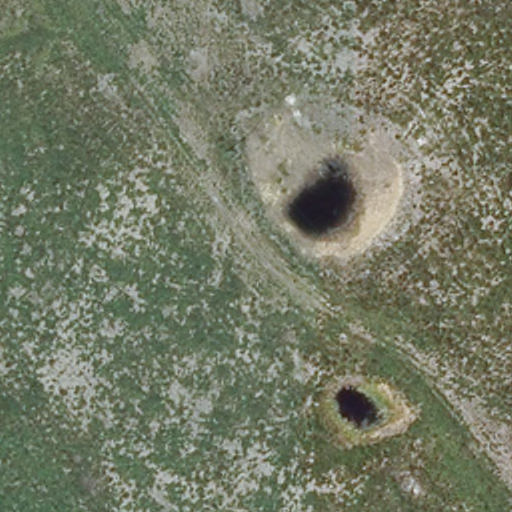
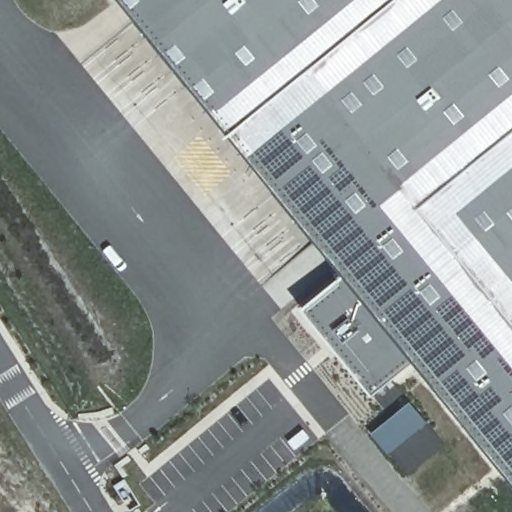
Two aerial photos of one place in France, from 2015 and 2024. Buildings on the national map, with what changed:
new [(420,365),(374,392),(307,308),(347,276),(124,0),(512,0),(512,478),(420,365)]
new [(413,406),(428,425),(392,454),(374,434),(413,406)]

